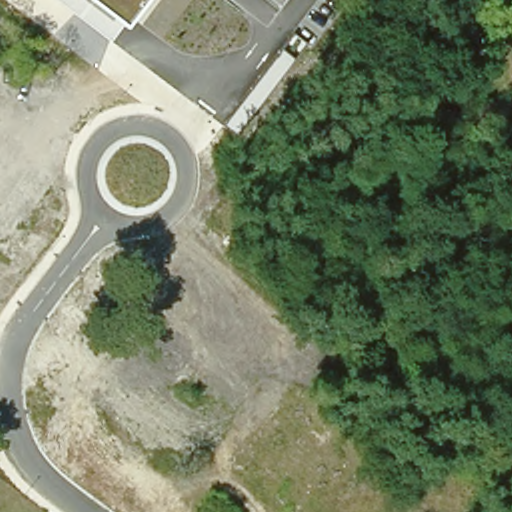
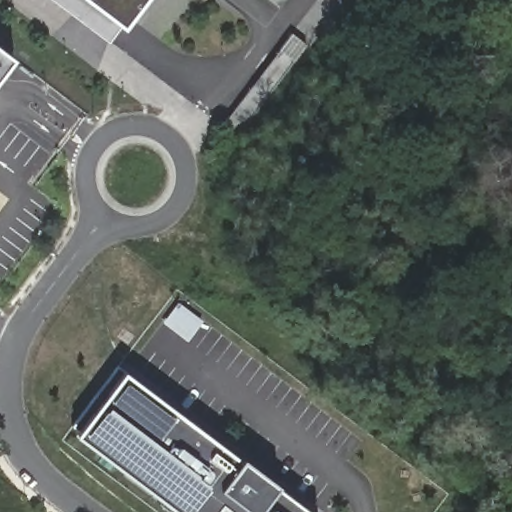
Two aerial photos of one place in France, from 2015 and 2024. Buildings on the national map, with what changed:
unchanged [(127,30),(121,26),(107,45),(49,0),(148,0),(127,30)]
new [(14,57),(0,75),(0,46),(14,57)]
new [(282,48),(297,60),(237,137),(223,125),(282,48)]
new [(126,371),(242,460),(276,486),(311,512),(180,512),(78,434),(126,371)]

